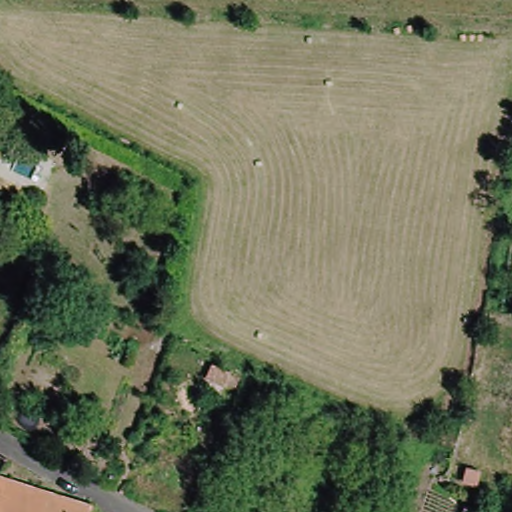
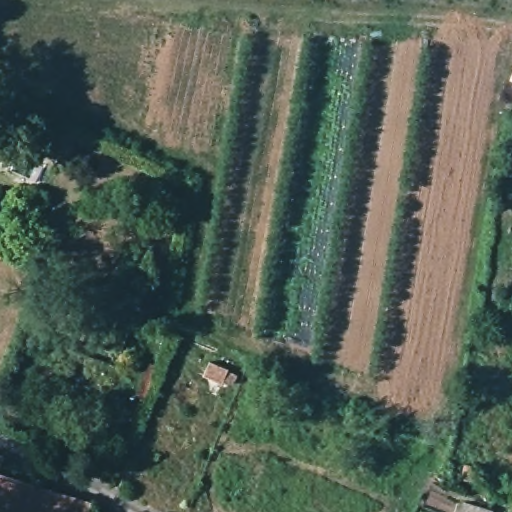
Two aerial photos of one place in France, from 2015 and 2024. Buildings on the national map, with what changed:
unchanged [(97,503),(95,509),(95,512),(0,512),(0,477),(97,503)]
unchanged [(483,512),(461,512),(463,505),(483,512)]
unchanged [(102,512),(95,512),(95,509),(102,512)]

